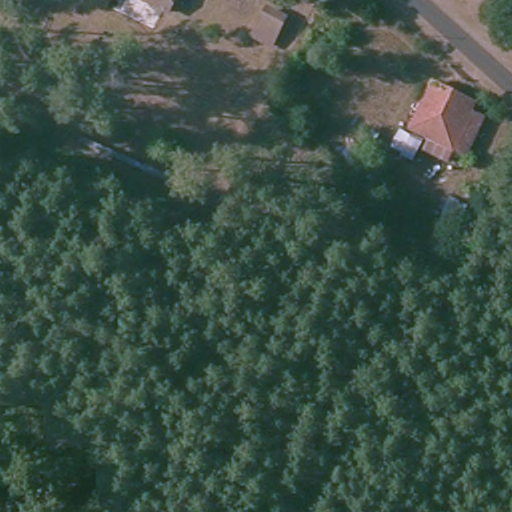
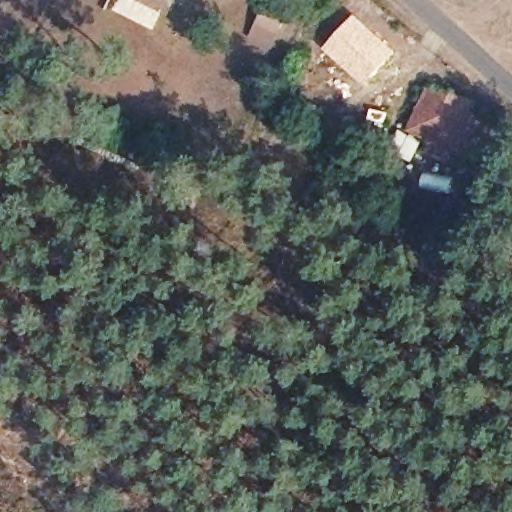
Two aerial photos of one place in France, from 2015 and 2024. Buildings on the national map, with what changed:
unchanged [(166,11),(145,0),(171,0),(166,11)]
unchanged [(285,18),(276,35),(255,24),(263,7),(285,18)]
new [(352,13),(394,51),(364,84),(322,47),(352,13)]
unchanged [(462,157),(410,130),(431,84),(473,103),(470,112),(482,117),(462,157)]

